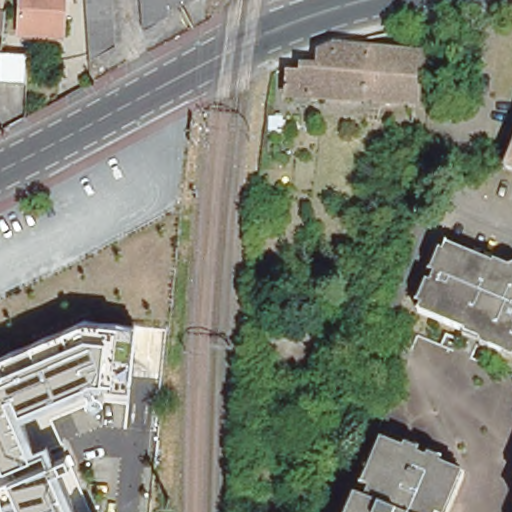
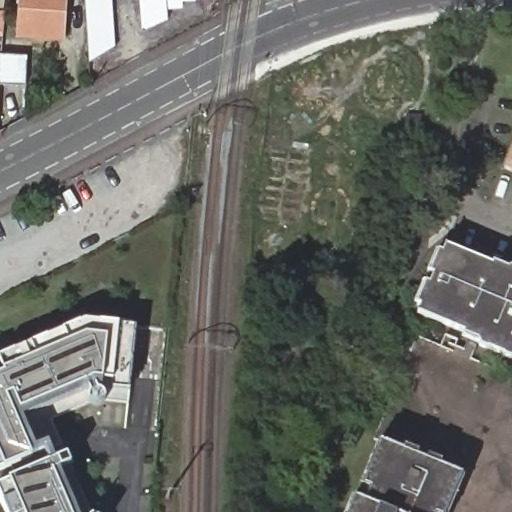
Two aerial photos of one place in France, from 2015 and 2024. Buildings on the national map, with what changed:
unchanged [(1,14),(6,15),(5,28),(4,37),(0,36),(0,0),(4,0),(1,14)]
unchanged [(20,33),(22,0),(65,0),(65,17),(65,19),(64,37),(44,35),(40,35),(20,33)]
unchanged [(116,52),(90,66),(84,0),(112,0),(116,52)]
unchanged [(182,1),(182,7),(168,9),(168,19),(142,33),(140,0),(195,0),(182,1)]
demolished [(337,47),(425,55),(422,105),(421,104),(420,109),(412,109),(413,104),(311,97),(298,97),(294,96),(295,72),(305,72),(305,67),(325,67),(325,52),(337,47)]
unchanged [(2,52),(28,54),(28,60),(27,83),(0,81),(0,52),(2,52)]
unchanged [(512,138),(512,173),(500,168),(512,138)]
unchanged [(506,360),(499,357),(500,355),(483,348),(482,350),(475,347),(474,343),(459,337),(460,332),(413,313),(416,306),(410,303),(419,281),(425,284),(429,275),(423,272),(432,250),(438,252),(441,246),(488,265),(489,261),(505,267),(509,266),(512,267),(512,359),(510,358),(506,360)]
unchanged [(131,390),(102,388),(88,388),(25,418),(38,447),(49,443),(79,512),(9,512),(0,490),(0,358),(89,322),(121,324),(137,326),(131,390)]
unchanged [(343,505),(353,483),(359,486),(365,488),(370,476),(366,474),(360,472),(379,426),(385,429),(403,437),(406,431),(420,436),(417,442),(426,446),(429,440),(443,446),(440,452),(459,460),(465,462),(446,507),(440,505),(436,503),(433,512),(348,512),(350,507),(343,505)]
unchanged [(512,476),(512,483),(510,482),(512,476)]

